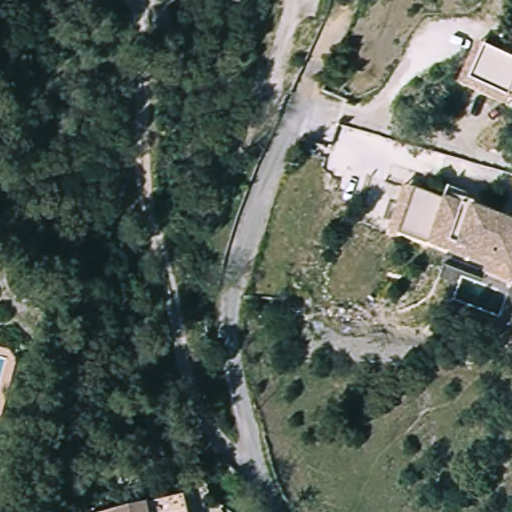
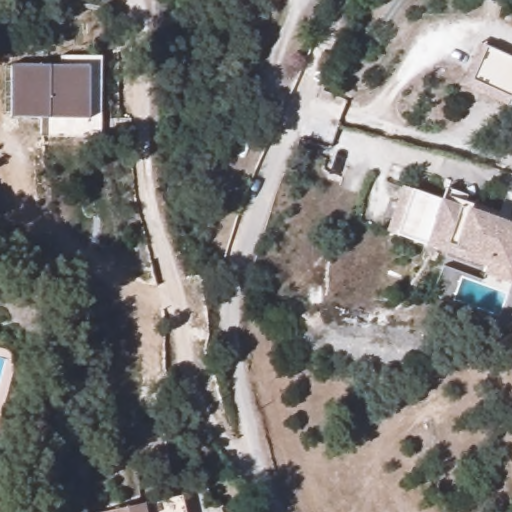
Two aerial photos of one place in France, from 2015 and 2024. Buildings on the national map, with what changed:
unchanged [(507,106),(459,85),(476,42),(512,58),(512,99),(511,99),(507,106)]
new [(60,66),(60,56),(101,57),(100,138),(48,138),(48,121),(10,120),(10,118),(11,65),(60,66)]
unchanged [(485,267),(384,232),(400,185),(440,199),(445,187),(473,197),(467,210),(512,224),(512,285),(482,275),(485,267)]
unchanged [(189,492),(193,512),(94,512),(189,492)]

